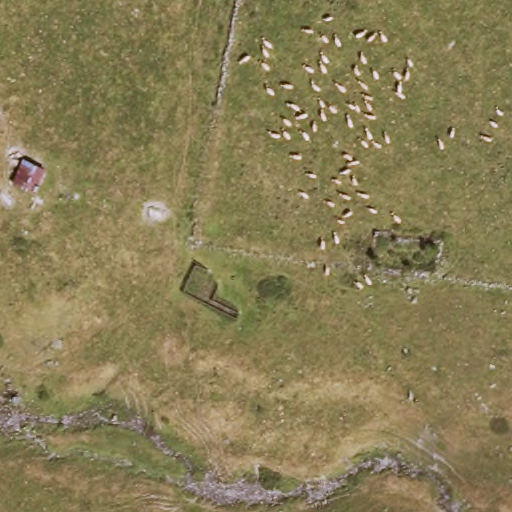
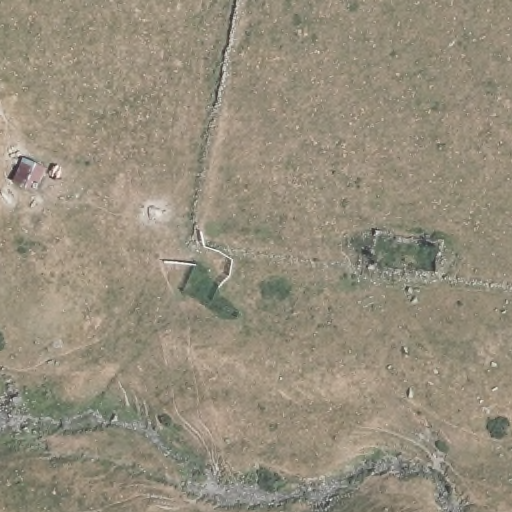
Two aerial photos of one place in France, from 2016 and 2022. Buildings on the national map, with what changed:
unchanged [(41,159),(34,176),(29,187),(5,176),(16,148),(41,159)]

